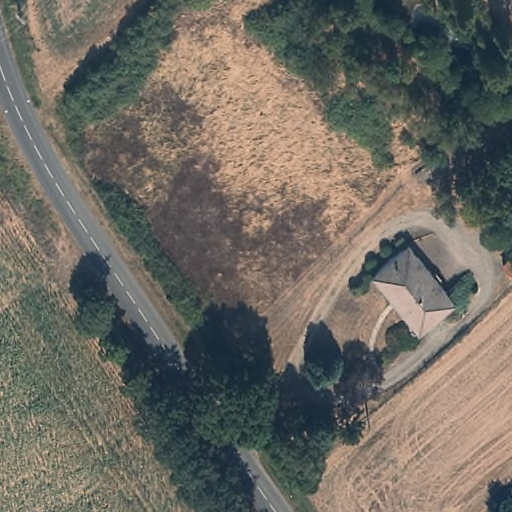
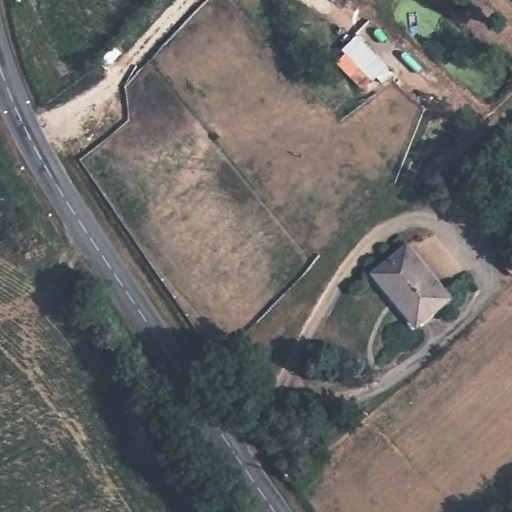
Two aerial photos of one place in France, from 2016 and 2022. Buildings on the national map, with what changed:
unchanged [(373,274),(410,245),(422,260),(388,292),(373,274)]
unchanged [(422,260),(450,296),(416,326),(388,292),(422,260)]

